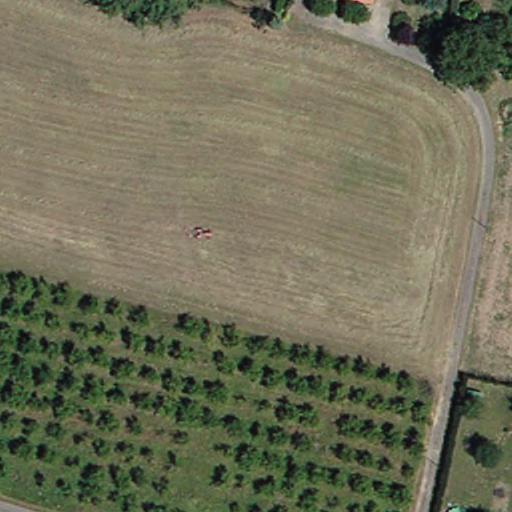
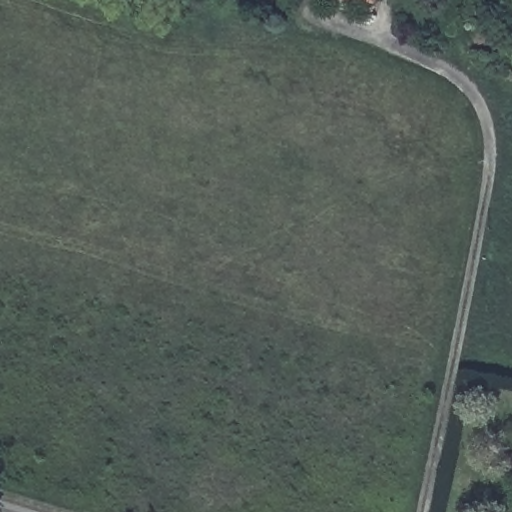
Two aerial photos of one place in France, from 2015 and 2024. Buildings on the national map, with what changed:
unchanged [(351,0),(375,0),(374,5),(351,0)]

